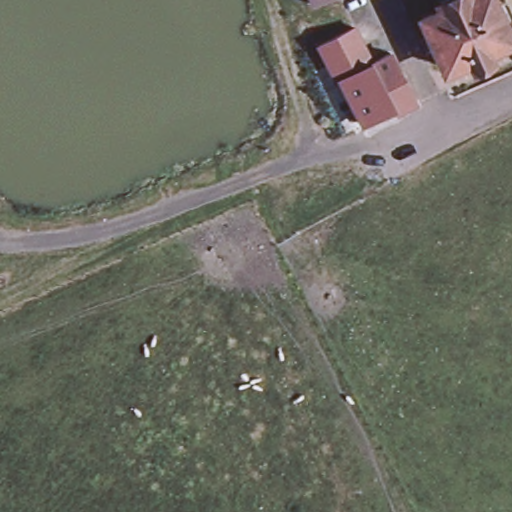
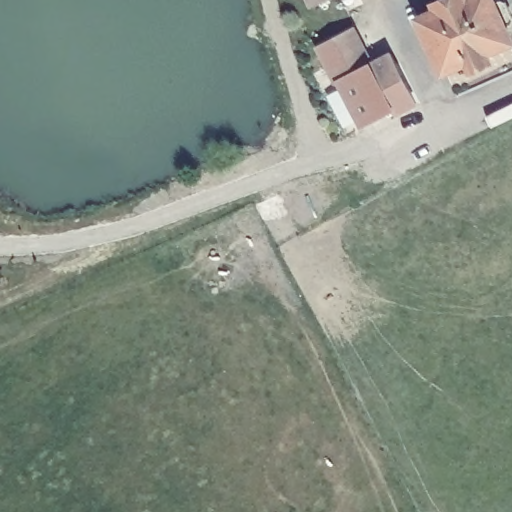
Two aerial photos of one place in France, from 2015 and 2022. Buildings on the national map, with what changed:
unchanged [(320,0),(315,2),(314,0),(320,0)]
unchanged [(465,63),(440,73),(418,23),(437,15),(434,6),(450,0),(465,0),(465,2),(470,0),(488,0),(507,45),(483,55),(485,64),(469,71),(465,63)]
unchanged [(359,25),(376,60),(395,51),(420,101),(400,112),(395,102),(387,106),(389,111),(365,123),(343,78),(342,78),(340,79),(322,42),(325,41),(359,25)]

